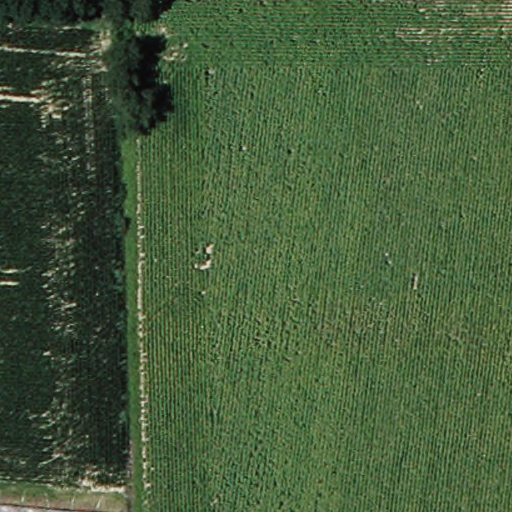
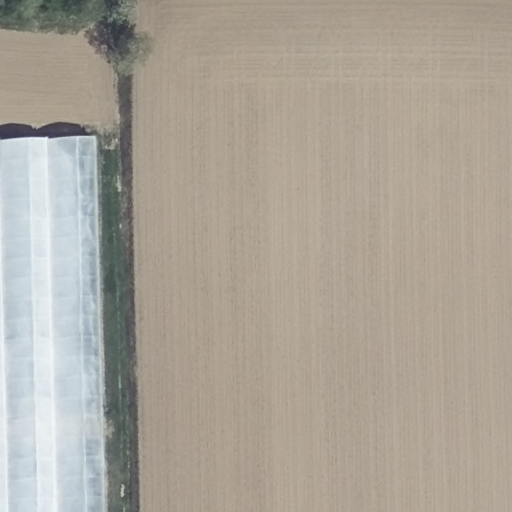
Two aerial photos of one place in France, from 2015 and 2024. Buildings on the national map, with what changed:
new [(93,140),(101,512),(0,512),(0,142),(93,140)]
demolished [(66,512),(0,512),(0,506),(66,512)]

